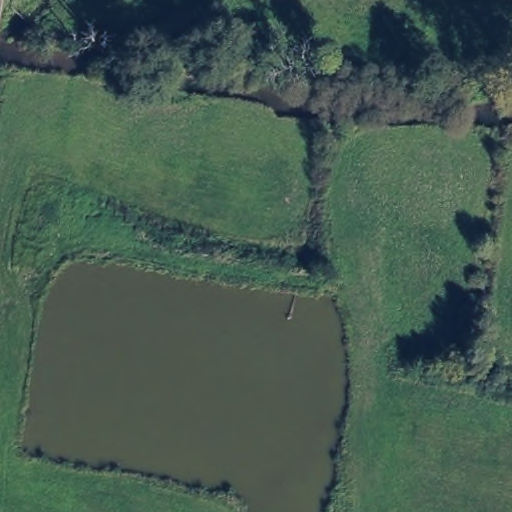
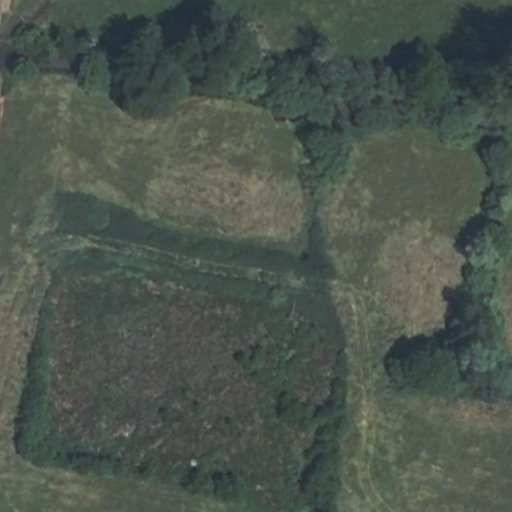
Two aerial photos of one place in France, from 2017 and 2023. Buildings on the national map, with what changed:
[]

